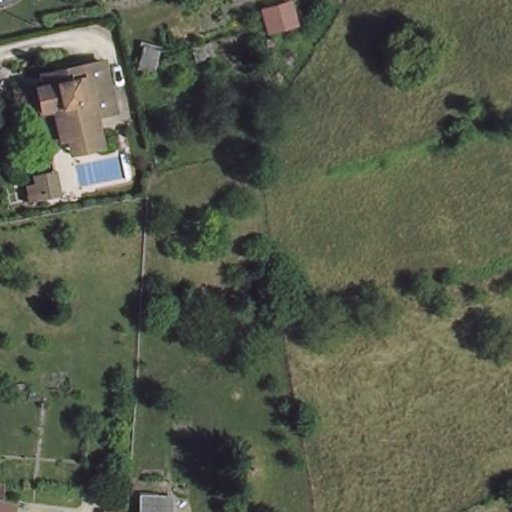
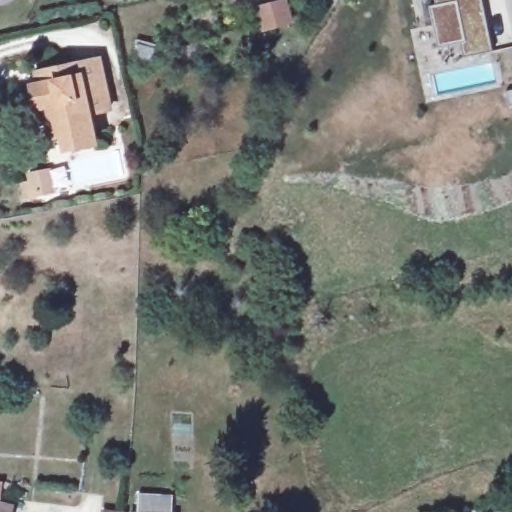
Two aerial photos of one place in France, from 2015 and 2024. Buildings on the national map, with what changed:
new [(281,0),(284,0),(288,21),(261,26),(257,4),(281,0)]
new [(490,51),(459,56),(457,46),(434,50),(426,7),(434,5),(433,0),(481,0),(490,51)]
unchanged [(66,143),(61,145),(56,129),(46,132),(42,117),(36,119),(30,97),(46,93),(44,82),(56,79),(104,67),(115,115),(93,121),(101,150),(81,154),(70,157),(66,143)]
unchanged [(4,512),(0,512),(0,508),(5,508),(4,512)]

